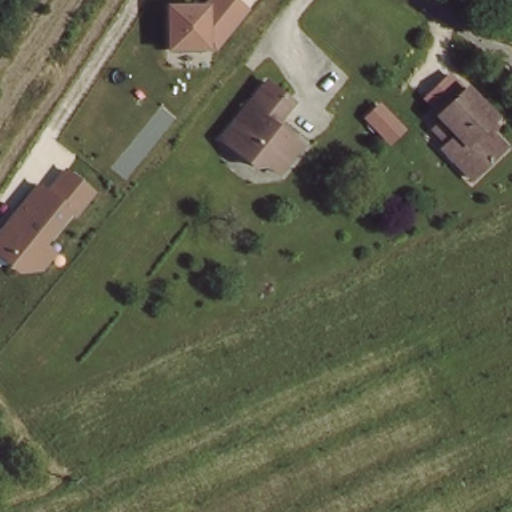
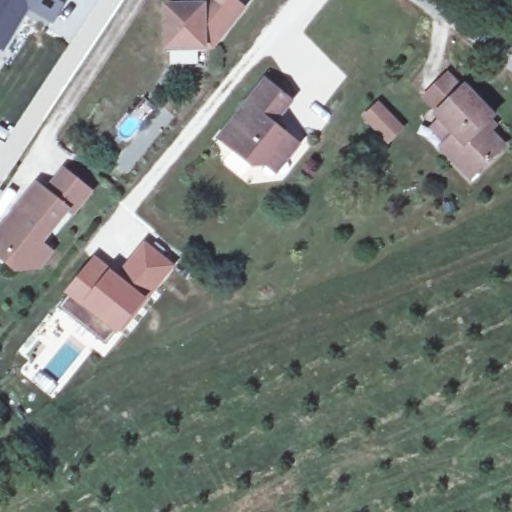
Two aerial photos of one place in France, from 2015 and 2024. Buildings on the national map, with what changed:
new [(0,50),(0,0),(68,0),(52,26),(28,11),(3,52),(0,50)]
unchanged [(216,51),(165,50),(163,4),(201,3),(204,0),(238,0),(248,8),(216,51)]
unchanged [(271,166),(264,159),(251,160),(218,131),(266,76),(291,98),(271,119),(294,139),(296,141),(281,158),(273,168),(271,166)]
unchanged [(439,130),(434,126),(465,94),(497,123),(495,125),(500,130),(491,140),(505,152),(471,186),(441,158),(445,153),(430,139),(439,130)]
new [(391,140),(383,133),(366,117),(379,105),(395,120),(403,128),(391,140)]
unchanged [(66,217),(45,244),(58,252),(41,271),(18,273),(0,260),(0,225),(31,185),(48,187),(63,168),(96,192),(73,222),(66,217)]
new [(116,329),(101,316),(88,332),(59,307),(95,261),(119,281),(133,264),(153,282),(116,329)]

